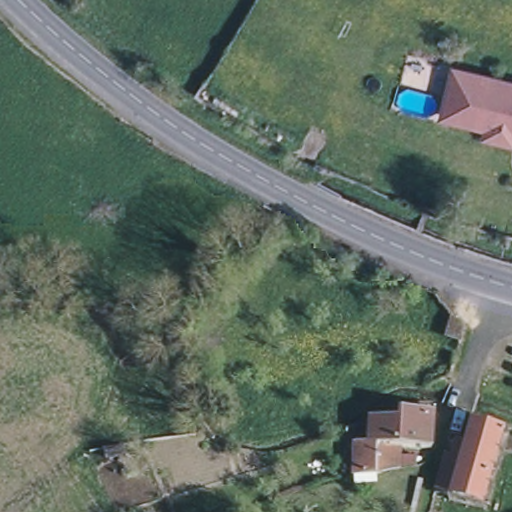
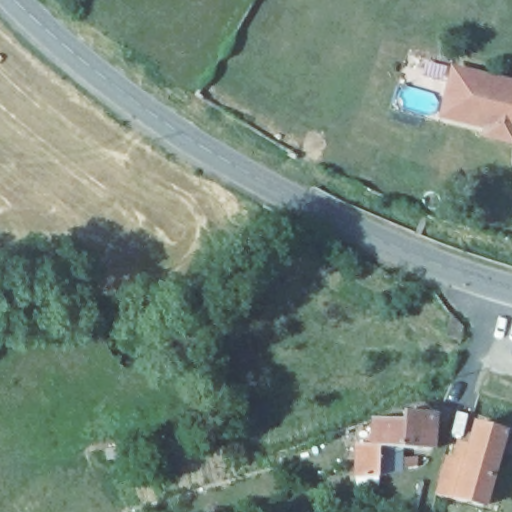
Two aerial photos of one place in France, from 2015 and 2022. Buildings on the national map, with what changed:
unchanged [(494,137),(497,128),(473,122),(452,117),(462,72),(486,79),(508,84),(512,85),(512,141),(494,137)]
unchanged [(376,478),(353,478),(353,447),(353,427),(372,419),(389,420),(391,412),(401,412),(429,414),(427,448),(396,448),(397,473),(376,478)]
unchanged [(448,457),(454,460),(459,445),(469,448),(476,425),(504,433),(482,510),(454,501),(437,495),(448,457)]

